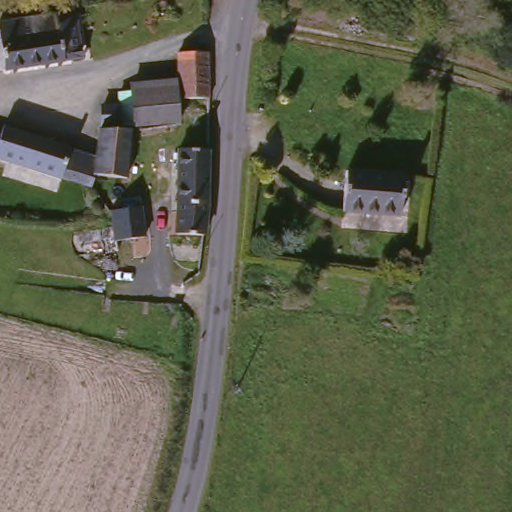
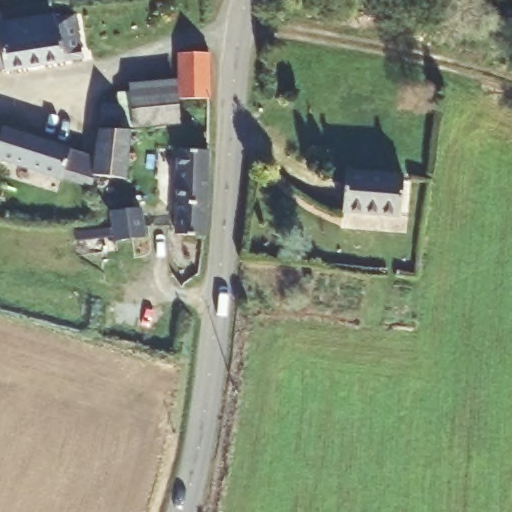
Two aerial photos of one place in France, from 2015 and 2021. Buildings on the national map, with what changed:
unchanged [(0,34),(77,22),(83,67),(0,81),(0,50),(3,50),(0,34)]
unchanged [(176,58),(204,58),(206,104),(173,104),(176,58)]
unchanged [(128,101),(173,104),(172,131),(126,131),(128,101)]
unchanged [(119,188),(81,194),(0,164),(0,134),(3,134),(90,163),(91,136),(126,141),(119,188)]
unchanged [(209,191),(204,243),(175,242),(178,157),(211,157),(209,191)]
unchanged [(356,175),(410,182),(405,221),(351,213),(356,175)]
unchanged [(135,247),(124,249),(106,252),(103,226),(130,220),(135,247)]

